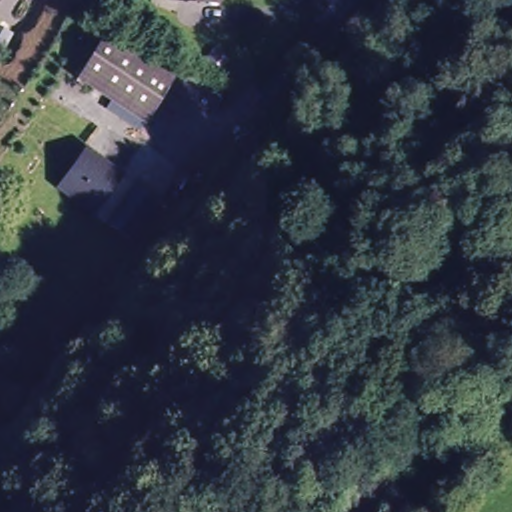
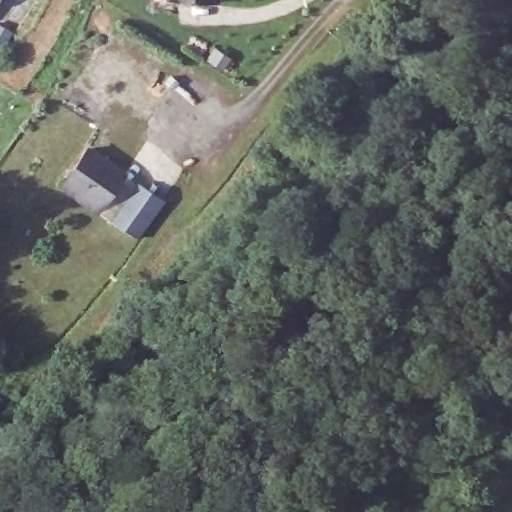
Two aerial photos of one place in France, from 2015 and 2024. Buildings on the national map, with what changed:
new [(10,32),(0,50),(0,26),(10,32)]
demolished [(69,72),(99,29),(178,72),(149,115),(69,72)]
unchanged [(90,152),(129,177),(102,217),(78,201),(64,191),(76,172),(90,152)]
unchanged [(114,226),(141,185),(167,204),(142,243),(114,226)]

